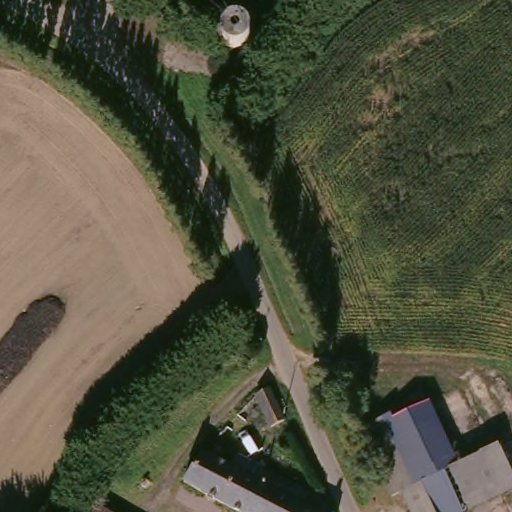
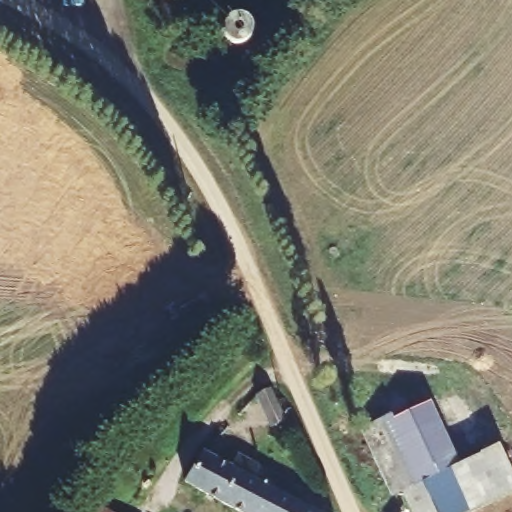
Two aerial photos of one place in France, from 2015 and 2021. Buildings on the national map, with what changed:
unchanged [(202,5),(200,0),(214,0),(202,5)]
unchanged [(233,46),(229,43),(226,38),(226,33),(226,28),(228,24),(231,21),(236,19),(240,19),(245,20),(251,24),(254,28),(255,31),(255,35),(254,39),(253,43),(250,46),(247,48),(243,49),(238,49),(233,46)]
unchanged [(285,421),(272,426),(259,396),(271,388),(285,421)]
unchanged [(423,479),(396,492),(364,425),(395,411),(397,416),(435,398),(465,460),(425,482),(423,479)]
unchanged [(478,453),(500,442),(512,464),(512,487),(460,512),(439,512),(425,482),(465,460),(478,453)]
unchanged [(203,450),(230,464),(237,450),(283,474),(264,512),(252,512),(187,478),(203,450)]
unchanged [(322,495),(326,502),(321,512),(322,512),(264,512),(283,474),(322,495)]
unchanged [(83,494),(114,512),(72,512),(75,506),(83,494)]

